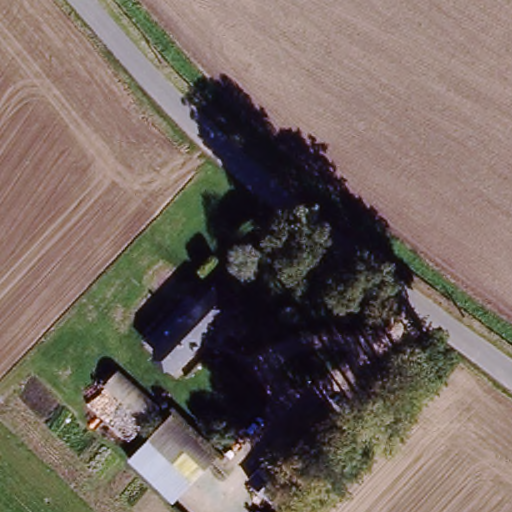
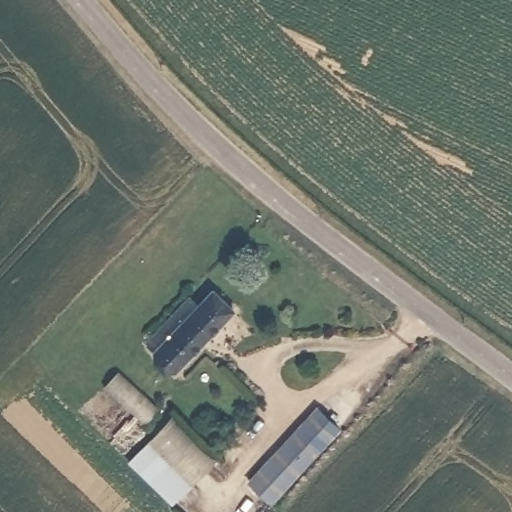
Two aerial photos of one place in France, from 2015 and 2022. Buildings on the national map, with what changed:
unchanged [(185,299),(193,307),(207,292),(230,315),(171,375),(140,345),(185,299)]
unchanged [(127,464),(155,433),(106,388),(122,370),(172,414),(177,410),(222,451),(173,505),(127,464)]
new [(319,406),(343,429),(271,505),(247,481),(319,406)]

